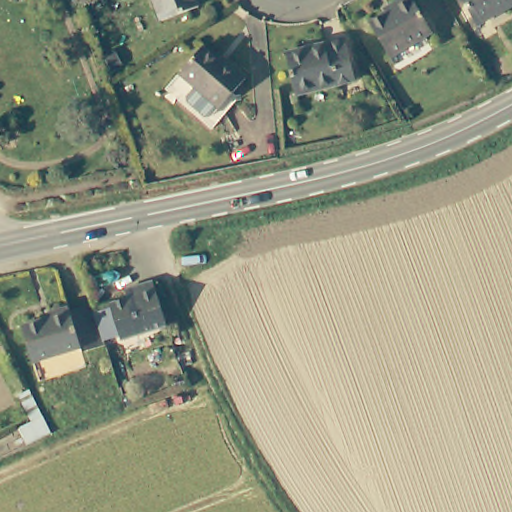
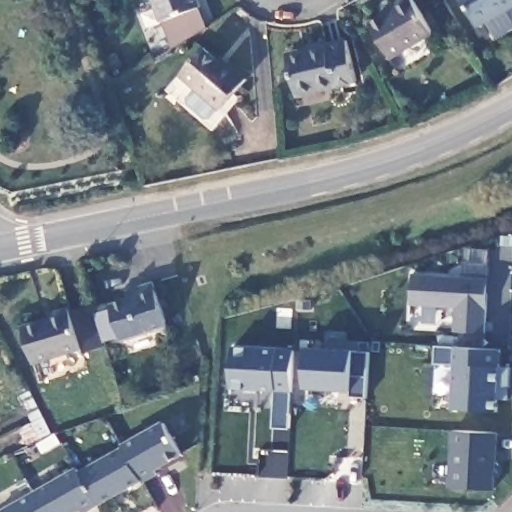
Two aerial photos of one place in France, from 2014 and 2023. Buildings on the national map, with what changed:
unchanged [(154,0),(197,0),(198,3),(162,18),(154,0)]
unchanged [(431,32),(390,56),(371,23),(395,9),(392,4),(400,0),(412,0),(431,32)]
unchanged [(512,4),(477,24),(463,0),(512,0),(512,4)]
unchanged [(229,57),(232,53),(250,67),(217,113),(175,82),(206,40),(229,57)]
unchanged [(352,82),(298,95),(288,56),(342,42),(352,82)]
new [(486,334),(453,332),(455,308),(410,304),(411,272),(488,277),(486,334)]
unchanged [(120,301),(117,293),(132,288),(149,283),(162,320),(165,328),(117,343),(113,332),(104,306),(120,301)]
unchanged [(71,356),(69,350),(21,366),(15,348),(8,326),(35,318),(34,313),(55,306),(75,300),(85,331),(91,349),(71,356)]
new [(454,364),(434,363),(435,344),(500,350),(498,367),(511,368),(507,398),(498,397),(497,410),(452,407),(454,364)]
new [(290,427),(273,426),(276,391),(231,387),(235,345),(293,349),(290,427)]
new [(366,396),(350,395),(350,391),(305,388),(307,346),(354,350),(368,351),(366,396)]
new [(79,471),(122,448),(121,444),(162,420),(182,457),(155,473),(157,475),(144,483),(142,482),(88,512),(82,512),(81,511),(79,512),(0,512),(0,510),(76,467),(79,471)]
new [(497,432),(495,490),(448,487),(451,429),(497,432)]

